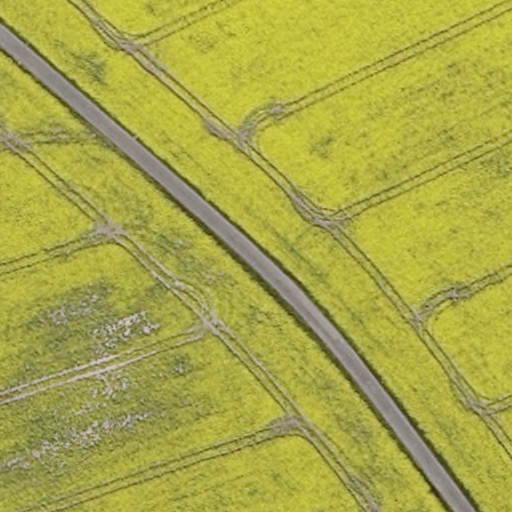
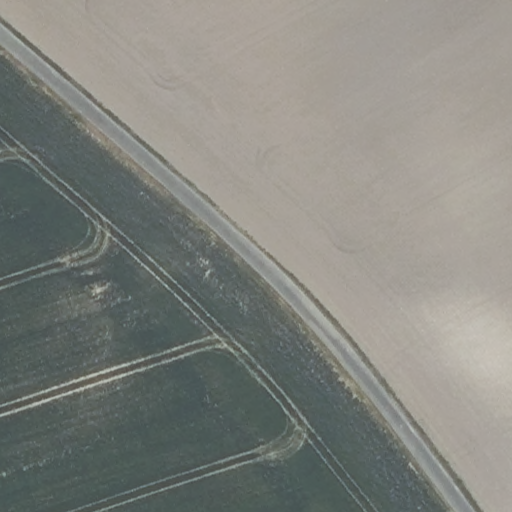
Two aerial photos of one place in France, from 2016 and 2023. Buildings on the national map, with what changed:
[]

